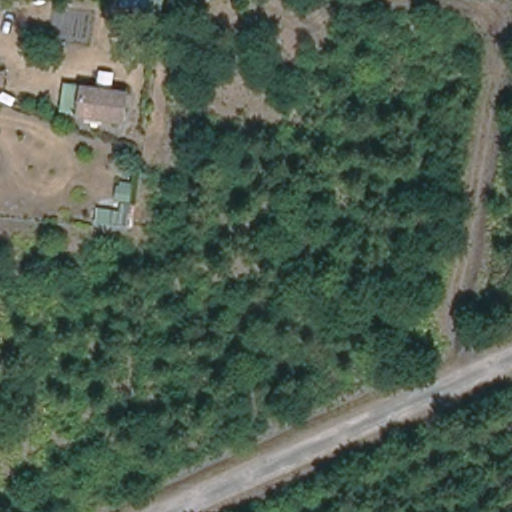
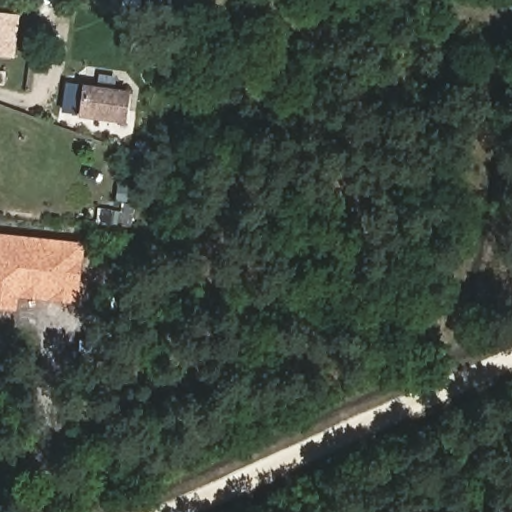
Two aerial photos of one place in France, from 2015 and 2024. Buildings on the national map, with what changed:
unchanged [(148,20),(148,7),(124,4),(125,0),(164,0),(159,21),(148,20)]
new [(18,52),(0,50),(0,14),(22,16),(18,52)]
unchanged [(0,87),(0,71),(6,72),(5,87),(0,87)]
unchanged [(79,115),(63,112),(68,84),(84,84),(79,115)]
unchanged [(84,86),(129,92),(124,122),(80,115),(84,86)]
unchanged [(100,209),(121,212),(123,205),(133,206),(129,226),(99,222),(100,209)]
new [(0,233),(84,241),(78,304),(18,297),(16,310),(0,309),(0,233)]

